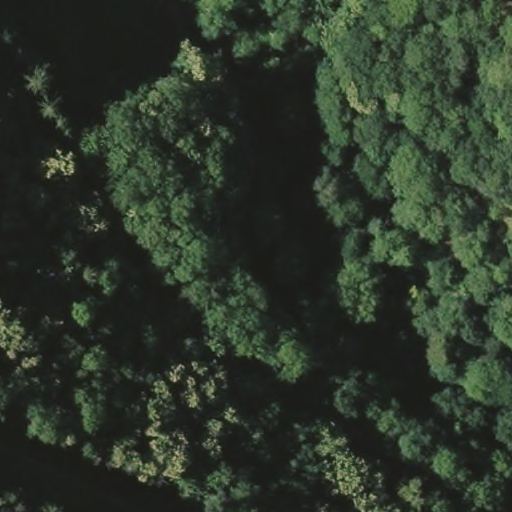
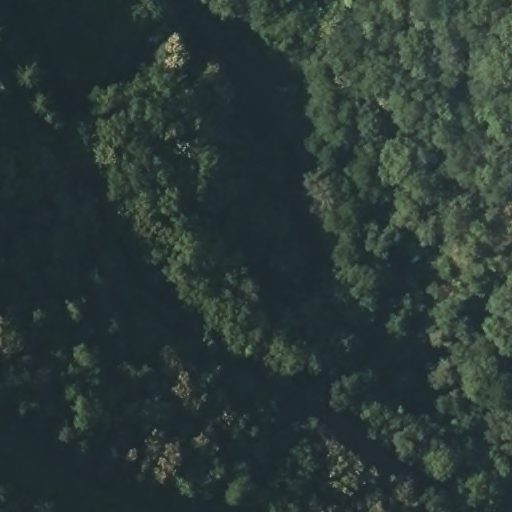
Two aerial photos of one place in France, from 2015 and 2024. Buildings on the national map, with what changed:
unchanged [(512,267),(512,278),(507,270),(512,267)]

